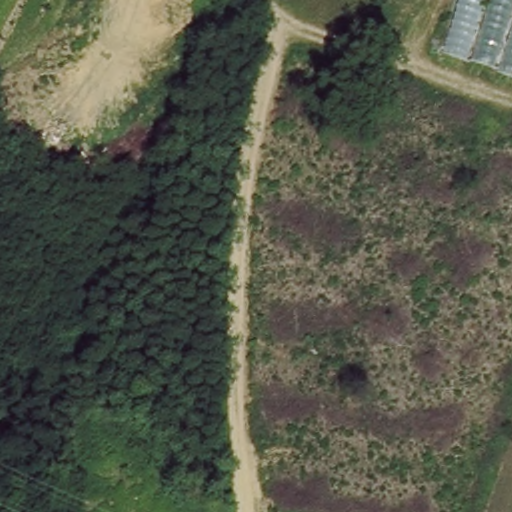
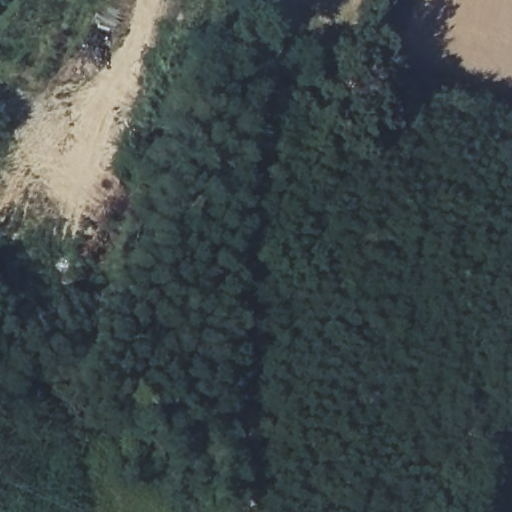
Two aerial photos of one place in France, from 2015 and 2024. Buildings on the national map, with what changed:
demolished [(444,53),(462,0),(512,0),(512,76),(444,53)]

